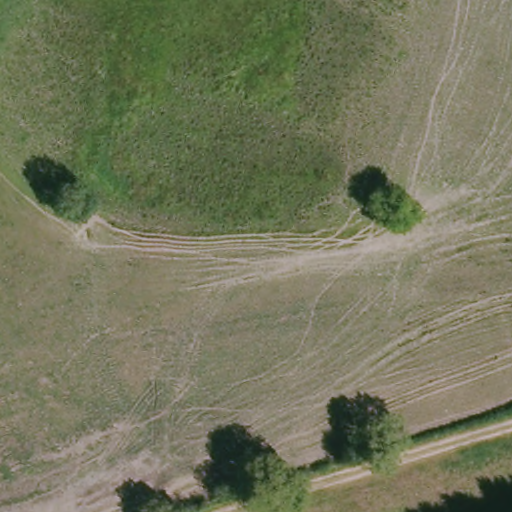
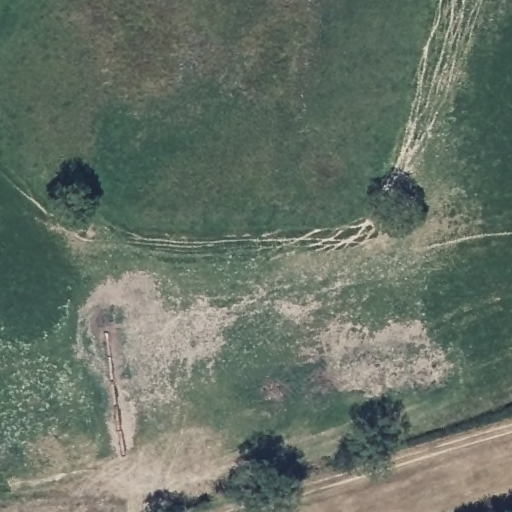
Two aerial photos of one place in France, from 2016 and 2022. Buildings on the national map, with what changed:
[]

